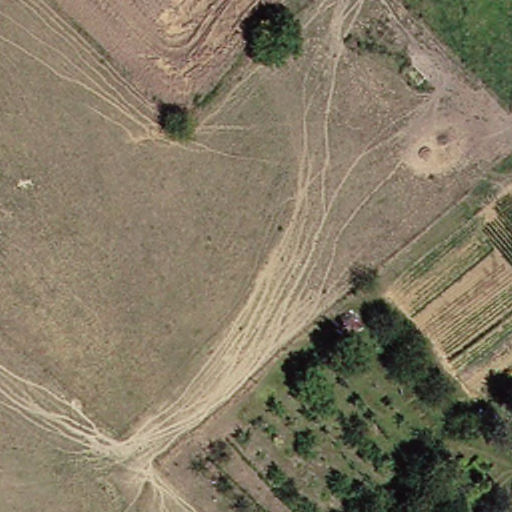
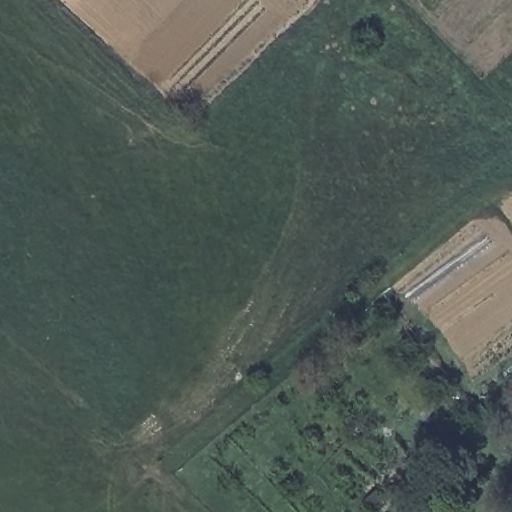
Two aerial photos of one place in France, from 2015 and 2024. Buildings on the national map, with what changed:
[]

